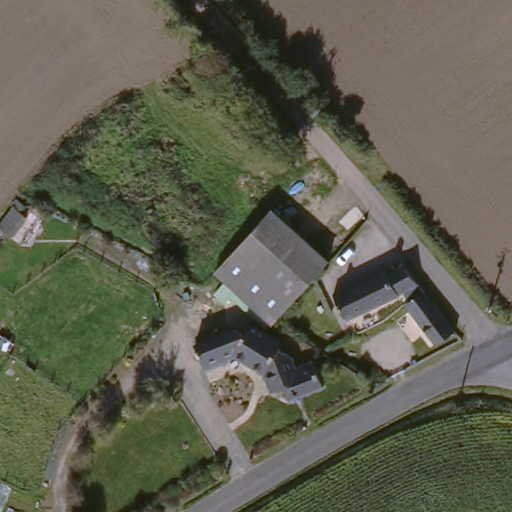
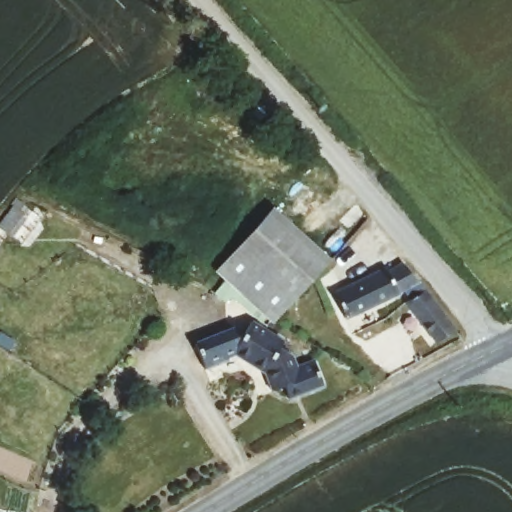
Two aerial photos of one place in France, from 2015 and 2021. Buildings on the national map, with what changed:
unchanged [(22,219),(6,243),(0,239),(0,221),(11,208),(22,219)]
unchanged [(209,272),(262,220),(319,274),(269,324),(209,272)]
unchanged [(342,320),(332,294),(383,271),(384,275),(399,269),(451,337),(435,350),(401,309),(406,305),(401,297),(342,320)]
unchanged [(278,342),(273,351),(287,360),(291,372),(313,365),(321,390),(281,403),(276,389),(264,392),(258,376),(228,357),(224,358),(226,362),(199,371),(191,346),(231,332),(242,338),(249,325),(278,342)]

